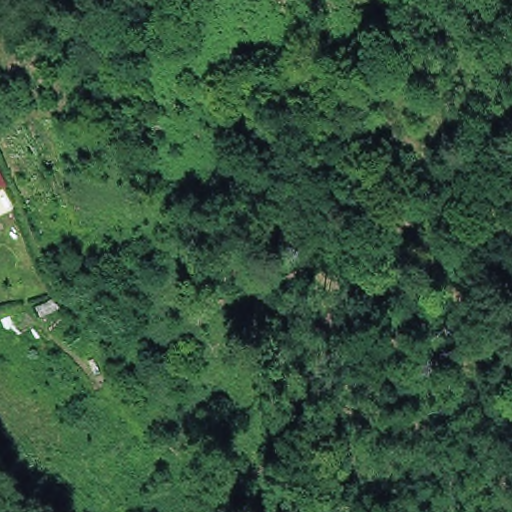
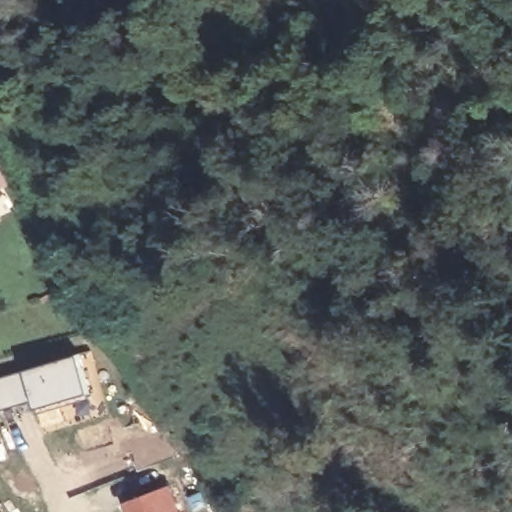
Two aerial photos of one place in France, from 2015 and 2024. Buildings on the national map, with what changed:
unchanged [(0,188),(0,175),(5,186),(0,188)]
new [(91,392),(37,408),(30,401),(0,409),(0,377),(77,357),(91,392)]
new [(122,503),(168,487),(178,512),(126,512),(122,503)]

